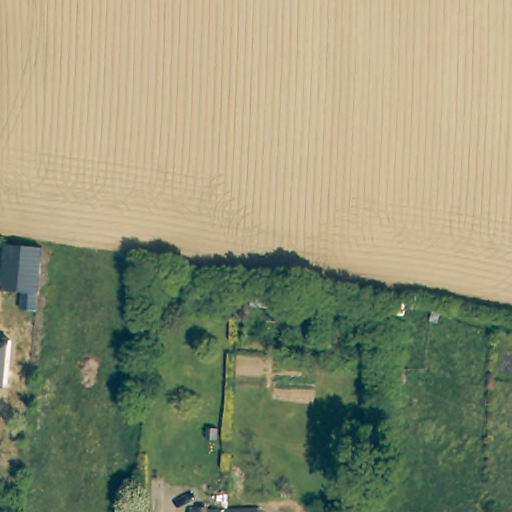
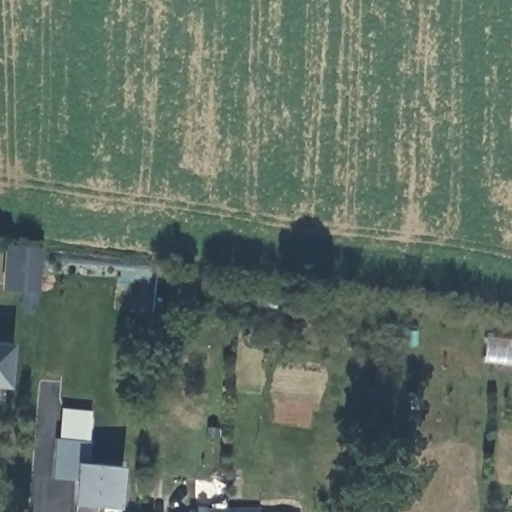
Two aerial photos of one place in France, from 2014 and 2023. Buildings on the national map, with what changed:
unchanged [(40,309),(27,309),(28,289),(1,287),(4,243),(45,245),(40,309)]
unchanged [(8,387),(0,387),(0,342),(13,342),(8,387)]
new [(89,440),(88,464),(125,467),(120,508),(100,506),(99,512),(72,512),(72,503),(75,480),(51,478),(56,438),(89,440)]
unchanged [(255,511),(255,512),(224,512),(255,511)]

